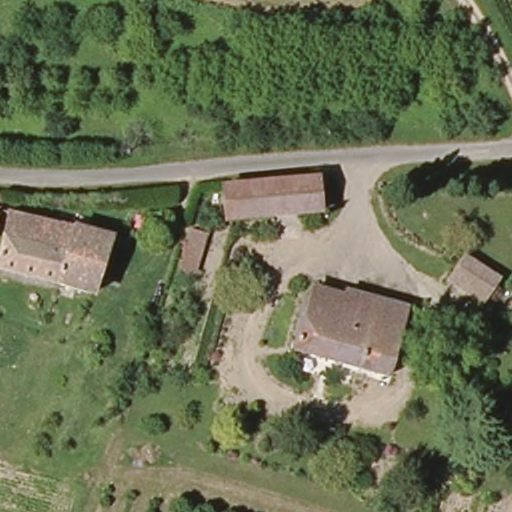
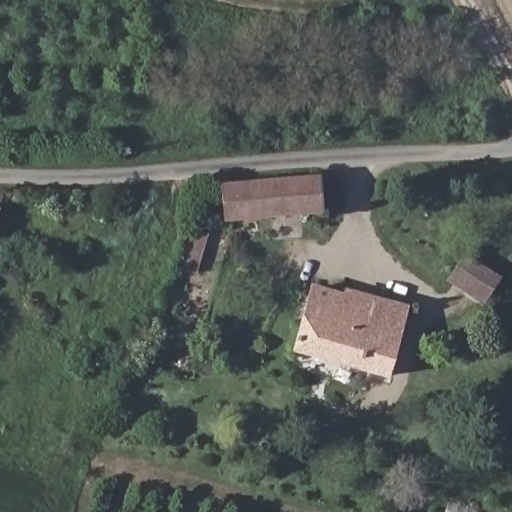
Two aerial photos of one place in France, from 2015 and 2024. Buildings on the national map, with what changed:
unchanged [(323,214),(228,220),(224,185),(320,177),(323,214)]
demolished [(99,292),(0,270),(0,259),(13,211),(113,234),(99,292)]
unchanged [(200,266),(183,261),(191,234),(208,239),(200,266)]
unchanged [(488,296),(453,277),(465,258),(497,277),(488,296)]
unchanged [(385,376),(292,351),(309,285),(343,293),(345,288),(405,303),(385,376)]

